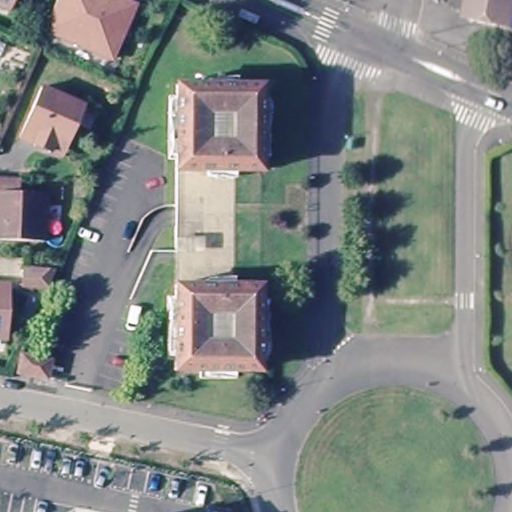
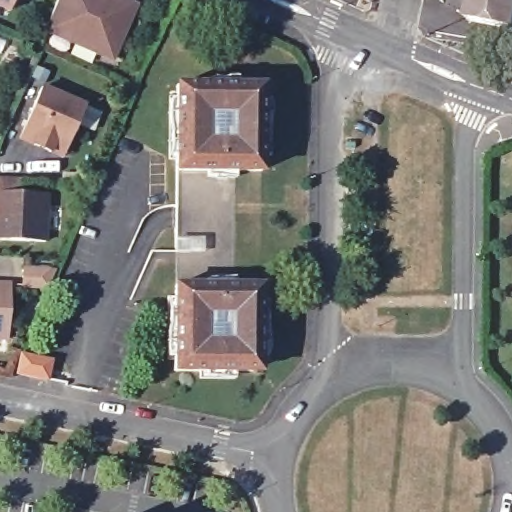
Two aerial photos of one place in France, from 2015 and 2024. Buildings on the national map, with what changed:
unchanged [(9,8),(0,4),(0,0),(12,0),(9,8)]
unchanged [(63,0),(113,0),(140,12),(117,64),(49,34),(63,0)]
unchanged [(469,21),(473,0),(512,0),(512,29),(469,21)]
unchanged [(267,177),(266,287),(179,287),(180,176),(180,88),(268,87),(267,177)]
unchanged [(89,110),(67,160),(24,139),(45,90),(89,110)]
unchanged [(52,208),(51,248),(0,246),(0,186),(20,187),(20,206),(52,208)]
unchanged [(47,287),(22,285),(23,271),(54,272),(47,287)]
unchanged [(266,287),(267,376),(178,376),(179,287),(266,287)]
unchanged [(0,335),(0,293),(10,293),(9,336),(0,335)]
unchanged [(53,357),(49,379),(16,373),(20,351),(53,357)]

